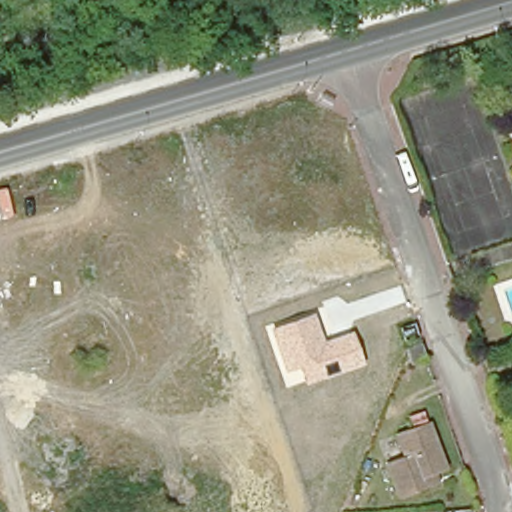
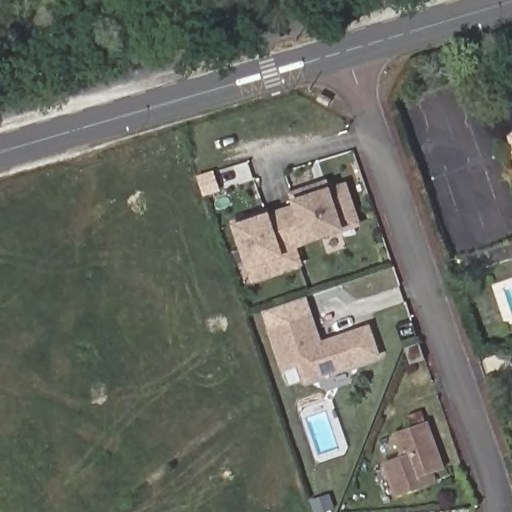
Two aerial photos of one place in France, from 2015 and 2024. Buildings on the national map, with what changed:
new [(285,207),(294,205),(292,200),(290,193),(327,181),(330,188),(348,181),(363,226),(345,232),(307,245),(299,248),(285,207)]
new [(252,284),(249,271),(232,225),(270,212),(285,207),(299,248),(304,266),(252,284)]
unchanged [(304,384),(299,368),(283,372),(268,328),(313,312),(323,341),(370,324),(381,358),(304,384)]
unchanged [(402,339),(417,332),(430,368),(415,375),(408,356),(402,339)]
unchanged [(392,461),(406,455),(399,432),(433,421),(449,469),(431,475),(434,484),(402,496),(392,461)]

